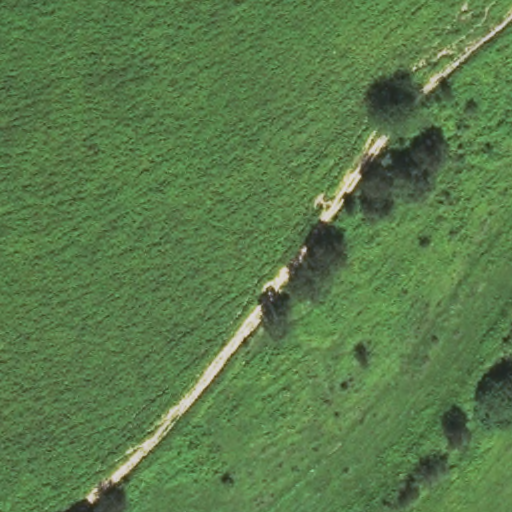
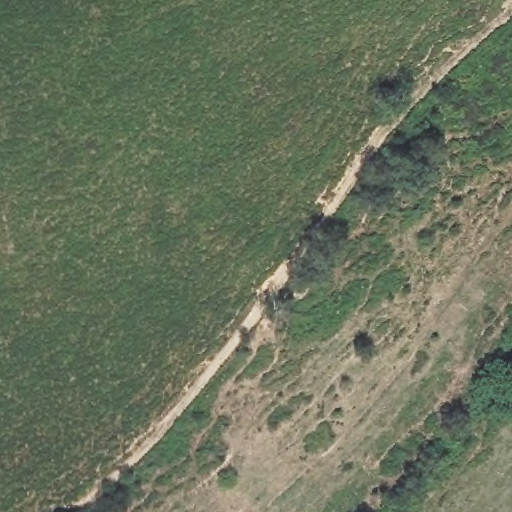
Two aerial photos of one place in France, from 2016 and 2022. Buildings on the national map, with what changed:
[]

